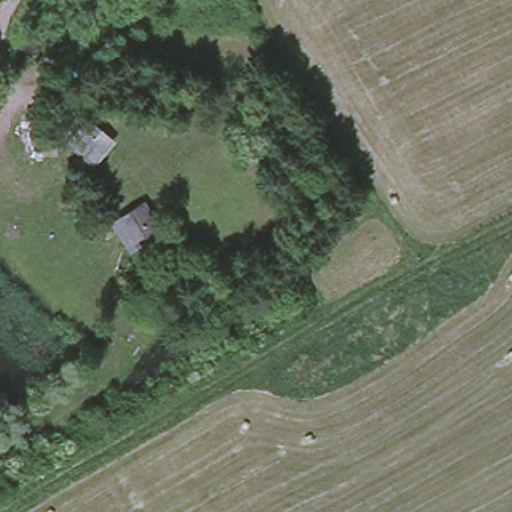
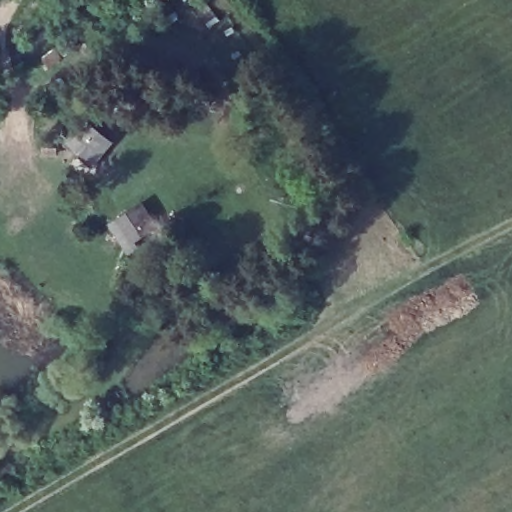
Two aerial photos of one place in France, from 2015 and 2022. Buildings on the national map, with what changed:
unchanged [(111,137),(92,164),(64,139),(82,114),(111,137)]
unchanged [(160,220),(122,244),(104,214),(141,198),(160,220)]

